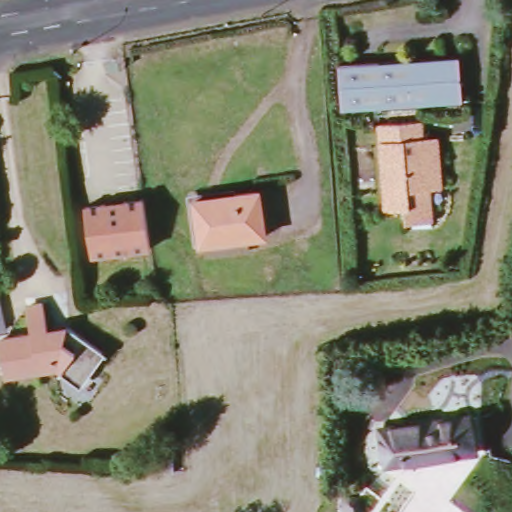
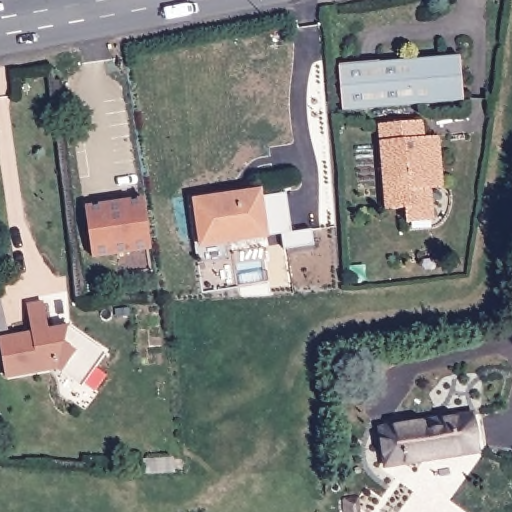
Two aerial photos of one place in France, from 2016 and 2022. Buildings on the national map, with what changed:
unchanged [(340,63),(395,59),(460,54),(464,99),(408,104),(344,109),(340,63)]
unchanged [(403,221),(402,207),(382,208),(375,123),(417,120),(418,137),(425,137),(433,137),(434,150),(436,185),(425,186),(426,205),(427,219),(403,221)]
unchanged [(197,202),(260,190),(267,234),(204,245),(197,202)]
unchanged [(93,257),(87,207),(149,199),(155,249),(93,257)]
unchanged [(8,332),(0,333),(0,300),(4,299),(8,332)]
unchanged [(55,364),(4,371),(0,340),(0,336),(32,331),(29,304),(45,302),(49,331),(68,329),(67,326),(101,352),(78,382),(55,364)]
unchanged [(374,424),(475,416),(478,451),(376,459),(374,424)]
unchanged [(356,495),(356,512),(341,512),(341,496),(356,495)]

